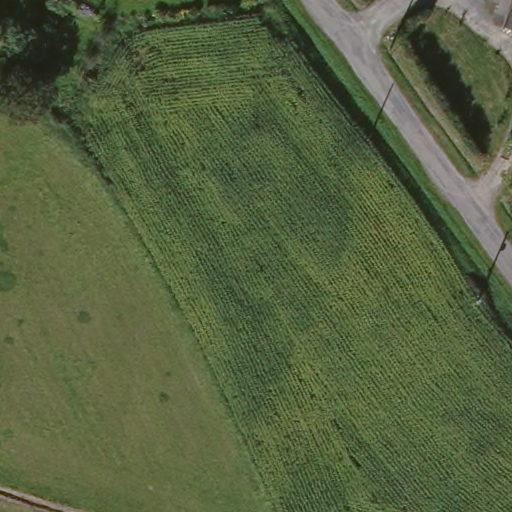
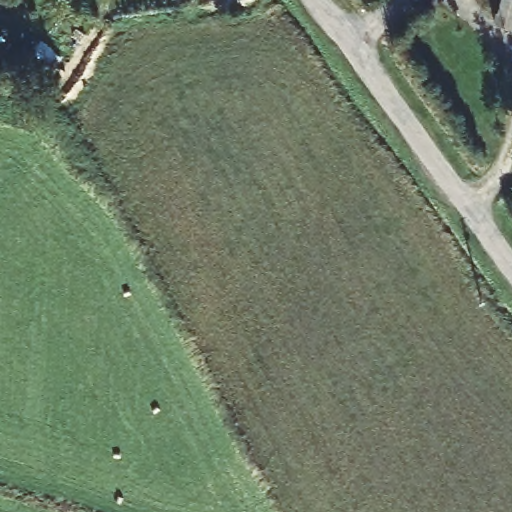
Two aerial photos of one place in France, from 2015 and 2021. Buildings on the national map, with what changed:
unchanged [(509,0),(512,0),(512,17),(505,15),(509,0)]

